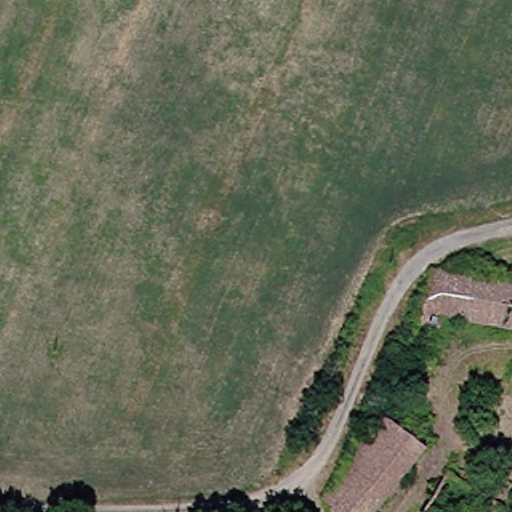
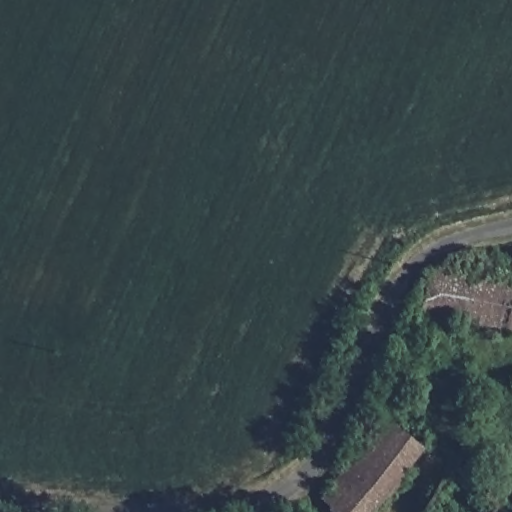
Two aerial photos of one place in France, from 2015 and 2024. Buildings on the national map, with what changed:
unchanged [(485,275),(473,317),(437,307),(433,306),(449,265),(485,275)]
unchanged [(512,282),(512,327),(473,317),(485,275),(512,282)]
unchanged [(500,382),(504,368),(512,370),(512,386),(500,382)]
unchanged [(387,417),(379,412),(387,398),(405,408),(395,422),(432,448),(382,512),(342,512),(327,501),(387,417)]

